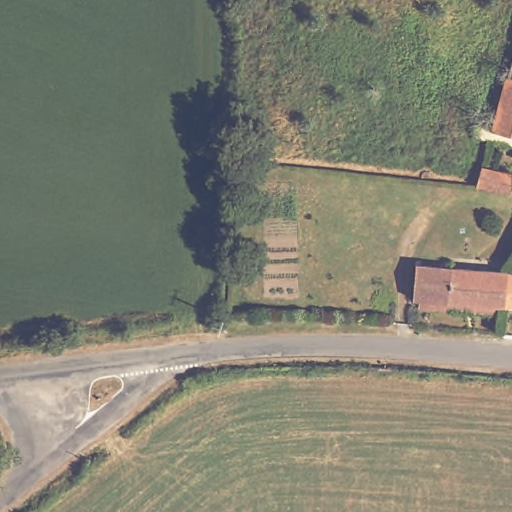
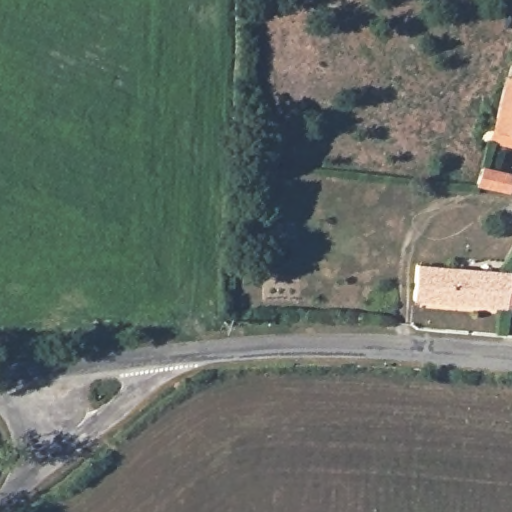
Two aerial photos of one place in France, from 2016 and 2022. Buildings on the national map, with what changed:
unchanged [(495,135),(508,87),(512,88),(512,141),(495,135)]
unchanged [(512,170),(512,189),(496,187),(500,167),(512,170)]
unchanged [(443,307),(443,300),(420,298),(423,263),(444,266),(444,272),(512,276),(512,310),(443,307)]

